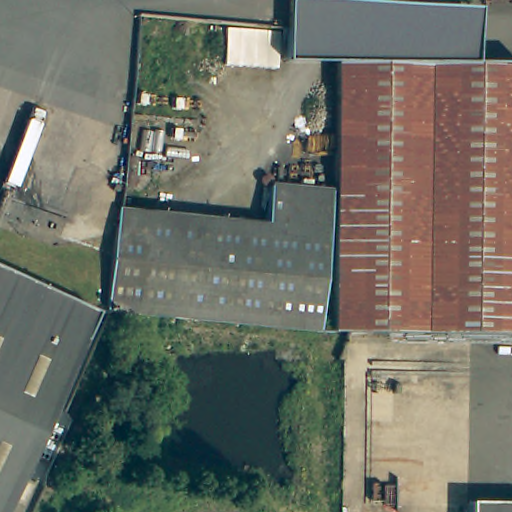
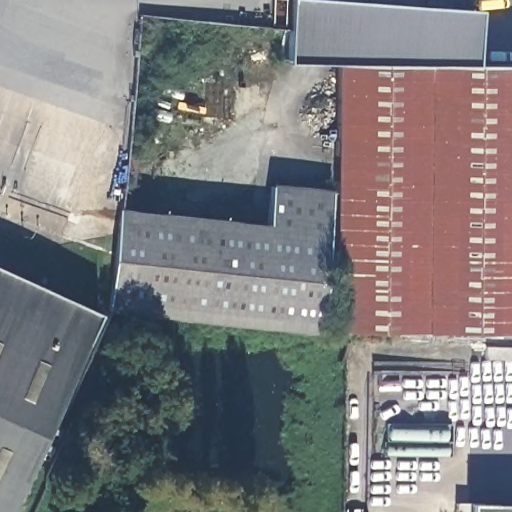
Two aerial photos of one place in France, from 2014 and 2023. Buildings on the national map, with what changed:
unchanged [(394,62),(369,62),(339,62),(336,62),(336,64),(328,63),(285,61),(289,0),(376,0),(440,4),(477,7),(473,62),(394,62)]
unchanged [(512,336),(370,333),(332,332),(336,64),(336,62),(339,62),(369,62),(394,62),(473,62),(512,62),(512,336)]
unchanged [(327,230),(266,224),(271,185),(331,191),(327,230)]
unchanged [(316,333),(108,312),(117,209),(266,224),(327,230),(316,333)]
unchanged [(95,312),(78,348),(32,448),(3,512),(0,512),(0,268),(95,312)]
unchanged [(512,485),(512,512),(472,512),(473,484),(512,485)]

